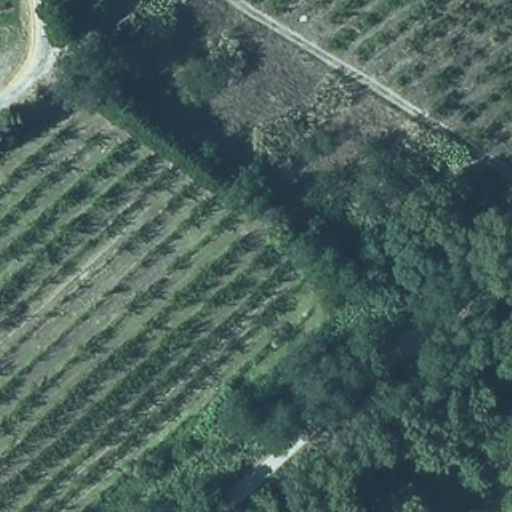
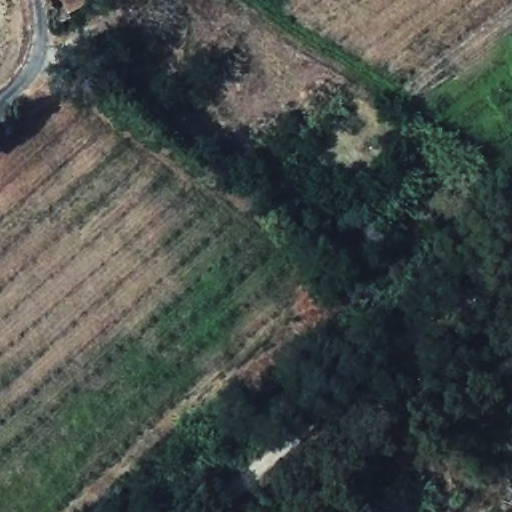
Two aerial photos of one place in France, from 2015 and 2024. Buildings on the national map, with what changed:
unchanged [(132,16),(141,31),(128,37),(118,26),(132,16)]

